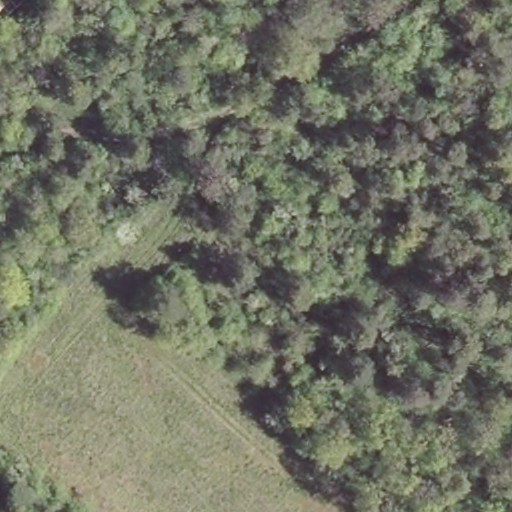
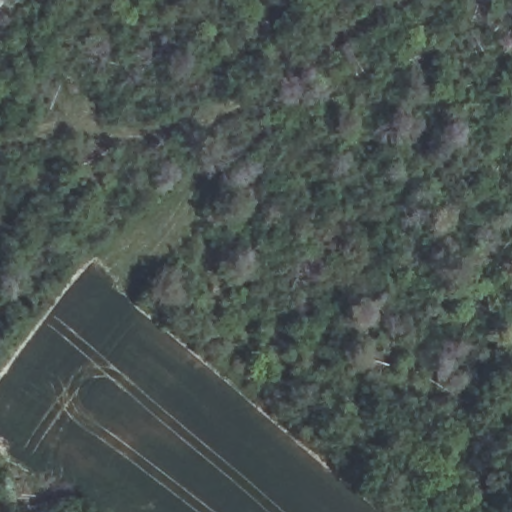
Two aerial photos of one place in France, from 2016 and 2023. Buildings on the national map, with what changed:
unchanged [(6,14),(0,19),(0,8),(6,14)]

